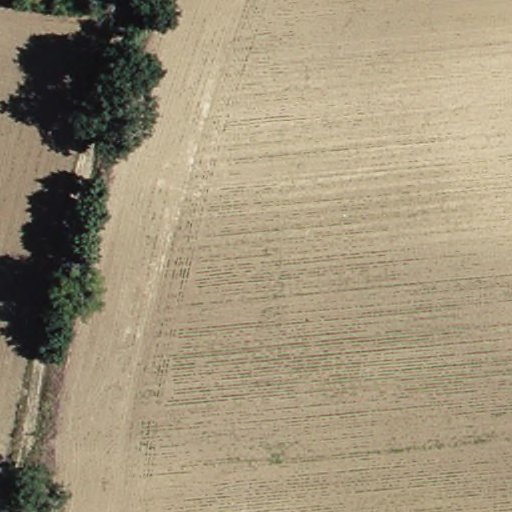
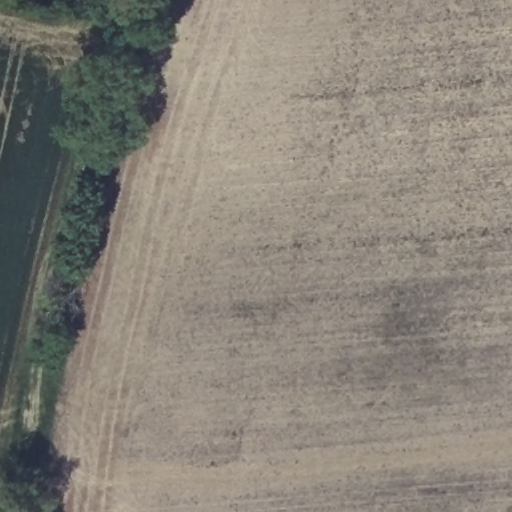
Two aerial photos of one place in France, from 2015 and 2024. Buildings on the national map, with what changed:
[]

